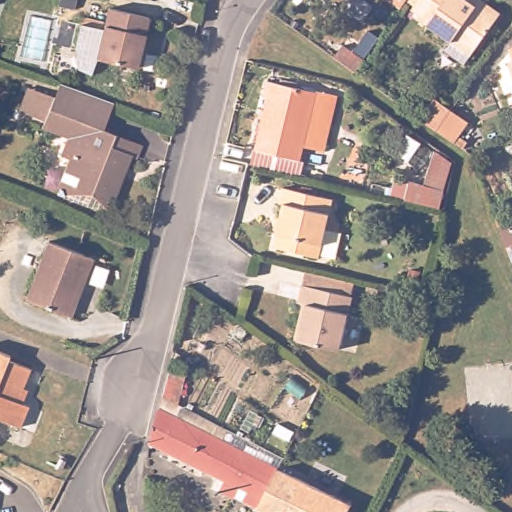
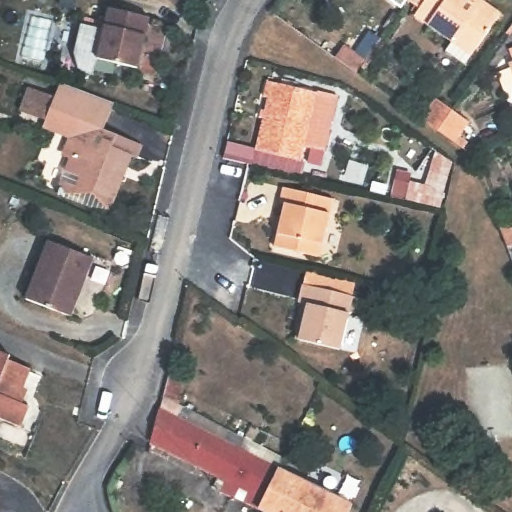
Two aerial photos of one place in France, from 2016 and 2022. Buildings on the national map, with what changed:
unchanged [(396,2),(393,0),(397,0),(396,2)]
unchanged [(415,14),(424,0),(468,0),(477,6),(481,1),(500,15),(466,67),(446,53),(454,42),(415,14)]
unchanged [(98,59),(111,9),(152,19),(139,70),(98,59)]
unchanged [(334,56),(348,39),(368,53),(356,72),(334,56)]
unchanged [(512,56),(512,80),(505,58),(512,56)]
unchanged [(58,193),(66,172),(72,157),(64,153),(70,139),(42,128),(45,119),(31,113),(22,109),(32,84),(41,88),(55,93),(62,78),(117,100),(106,131),(142,145),(136,160),(132,159),(113,203),(110,211),(90,207),(58,193)]
unchanged [(258,152),(269,101),(265,101),(269,84),(317,95),(302,162),(258,152)]
unchanged [(422,120),(434,104),(452,117),(467,128),(455,144),(441,134),(422,120)]
unchanged [(276,245),(285,205),(278,203),(283,187),(331,199),(318,254),(276,245)]
unchanged [(507,221),(509,227),(512,226),(512,241),(502,244),(495,225),(507,221)]
unchanged [(29,297),(49,241),(95,257),(74,313),(29,297)]
unchanged [(299,348),(307,312),(298,310),(302,295),(306,281),(354,293),(351,307),(340,358),(299,348)]
unchanged [(0,422),(0,352),(17,360),(14,367),(37,379),(22,409),(32,414),(23,433),(0,422)]
unchanged [(289,476),(270,512),(255,512),(242,506),(212,491),(217,481),(176,459),(150,443),(159,410),(280,472),(289,476)]
unchanged [(316,490),(305,512),(270,512),(289,476),(316,490)]
unchanged [(352,509),(350,512),(305,512),(316,490),(352,509)]

